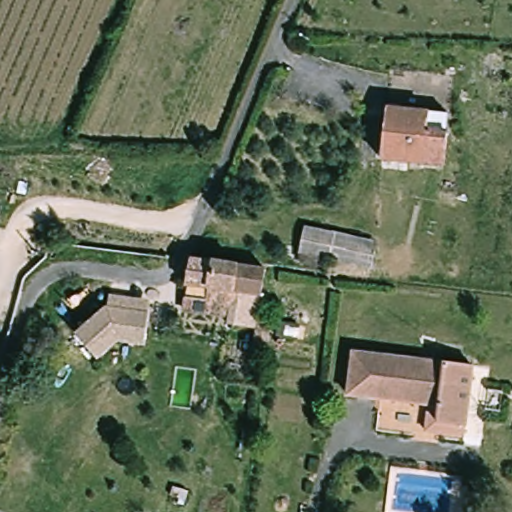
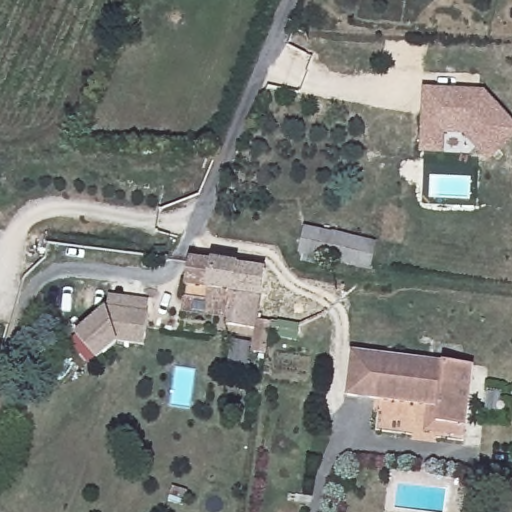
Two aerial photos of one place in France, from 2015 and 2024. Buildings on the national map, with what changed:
new [(443,154),(419,152),(422,86),(485,90),(512,120),(512,140),(488,162),(464,136),(445,135),(443,154)]
demolished [(386,109),(447,115),(442,166),(381,160),(386,109)]
unchanged [(375,242),(370,269),(299,254),(304,227),(375,242)]
unchanged [(265,355),(265,354),(257,353),(259,344),(260,334),(248,332),(249,326),(225,323),(226,316),(229,298),(222,297),(223,290),(184,285),(189,257),(202,259),(237,264),(263,267),(255,322),(270,324),(268,335),(267,345),(265,355)]
unchanged [(226,316),(180,310),(184,285),(223,290),(222,297),(229,298),(226,316)]
unchanged [(106,309),(146,317),(140,348),(114,343),(93,360),(73,335),(106,309)]
unchanged [(465,425),(437,422),(438,406),(346,395),(352,351),(473,366),(465,425)]
unchanged [(499,411),(485,410),(487,389),(501,391),(499,411)]
unchanged [(475,512),(466,512),(463,511),(465,491),(477,493),(475,512)]

